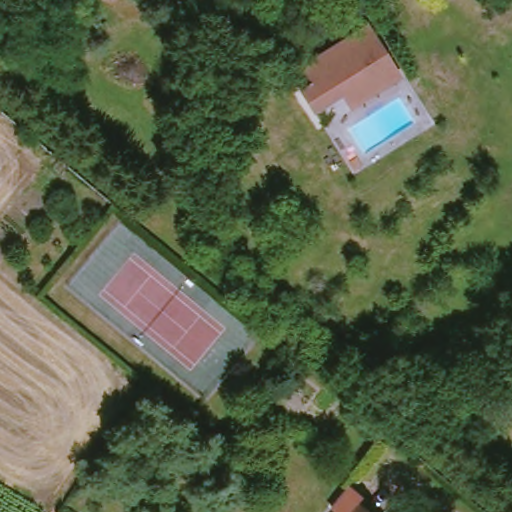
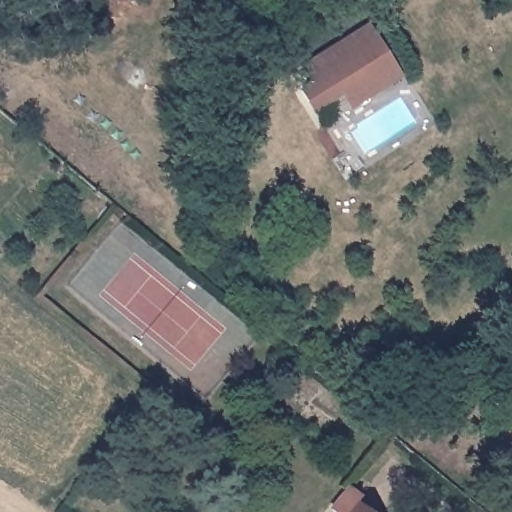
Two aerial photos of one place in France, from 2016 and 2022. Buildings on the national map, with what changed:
unchanged [(404,80),(350,114),(342,99),(313,116),(299,89),(311,83),(302,65),(369,23),(404,80)]
unchanged [(364,512),(350,512),(356,506),(364,512)]

